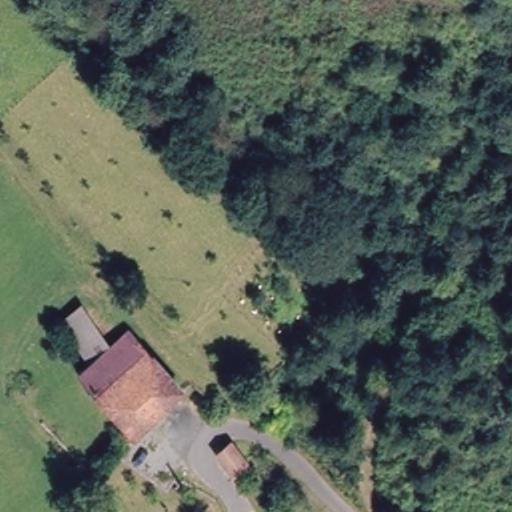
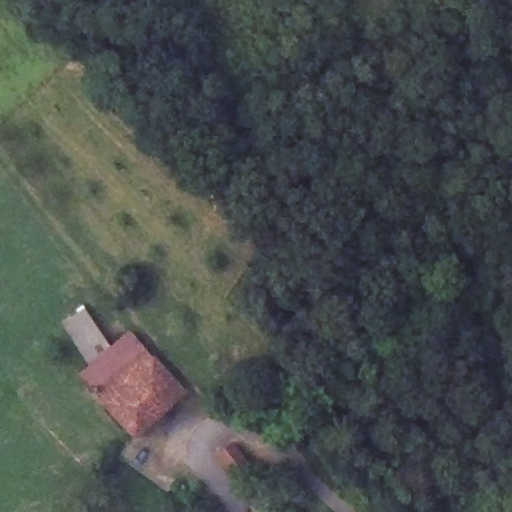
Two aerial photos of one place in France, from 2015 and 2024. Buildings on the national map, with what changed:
unchanged [(114,351),(135,335),(188,392),(139,435),(86,374),(96,366),(68,330),(63,323),(80,309),(90,321),(114,351)]
unchanged [(250,466),(238,476),(225,452),(237,444),(250,466)]

